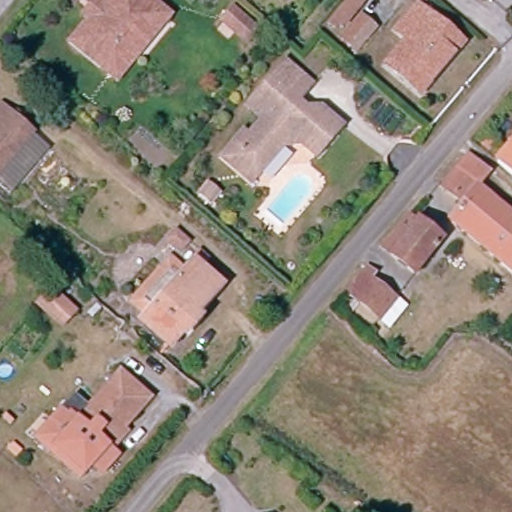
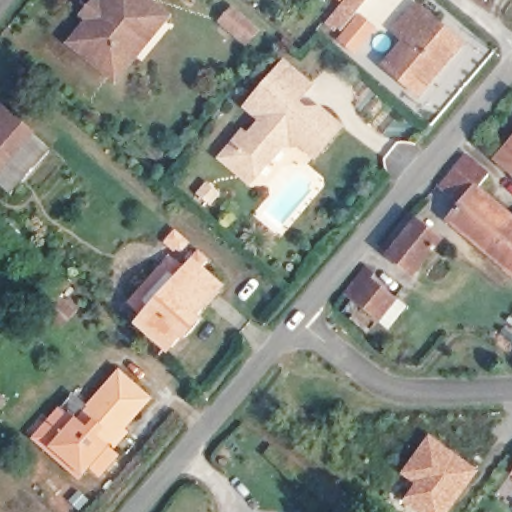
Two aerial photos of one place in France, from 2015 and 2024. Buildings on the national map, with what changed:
unchanged [(74,45),(78,40),(92,21),(81,14),(93,0),(102,0),(106,4),(109,0),(149,0),(169,15),(142,50),(119,80),(103,68),(74,45)]
unchanged [(325,35),(320,41),(315,37),(346,0),(366,0),(331,40),(325,35)]
unchanged [(364,22),(382,0),(389,0),(394,4),(373,30),(364,22)]
unchanged [(240,41),(235,37),(216,21),(227,8),(246,24),(251,29),(240,41)]
unchanged [(417,91),(384,64),(405,40),(393,30),(407,14),(418,23),(425,14),(443,29),(458,42),(417,91)]
unchanged [(219,163),(241,137),(248,144),(265,124),(247,109),(282,66),(307,87),(293,105),(305,114),(314,112),(332,127),(305,160),(292,150),(278,150),(253,177),(245,186),(219,163)]
unchanged [(31,131),(0,167),(0,105),(0,104),(31,131)]
unchanged [(512,125),(512,172),(491,154),(512,125)]
unchanged [(441,185),(467,155),(488,172),(477,186),(512,216),(512,276),(511,276),(446,221),(462,202),(441,185)]
unchanged [(440,241),(413,272),(381,248),(408,215),(440,241)]
unchanged [(129,301),(167,257),(185,273),(192,265),(217,286),(194,313),(197,317),(181,335),(179,332),(168,343),(143,321),(147,316),(136,307),(129,301)]
unchanged [(351,300),(344,293),(365,268),(373,276),(370,281),(390,300),(375,317),(353,298),(351,300)]
unchanged [(74,310),(61,325),(39,307),(52,292),(74,310)]
unchanged [(112,438),(106,432),(97,442),(107,451),(91,468),(81,458),(71,470),(43,443),(70,416),(84,401),(115,367),(143,393),(117,420),(124,426),(112,438)]
unchanged [(30,431),(42,417),(70,388),(84,401),(70,416),(43,443),(30,431)]
new [(481,471),(451,512),(417,512),(401,501),(414,483),(400,475),(430,435),(481,471)]

